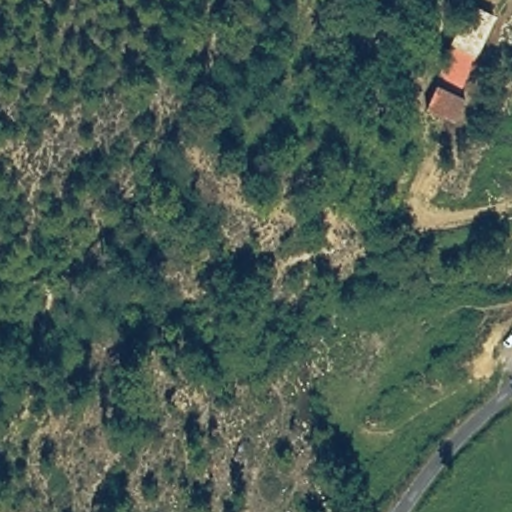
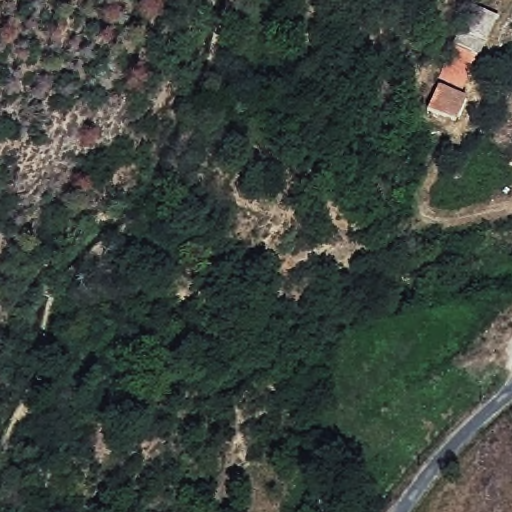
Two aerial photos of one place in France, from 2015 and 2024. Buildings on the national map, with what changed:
unchanged [(427,110),(470,3),(495,14),(461,96),(470,99),(458,125),(427,110)]

